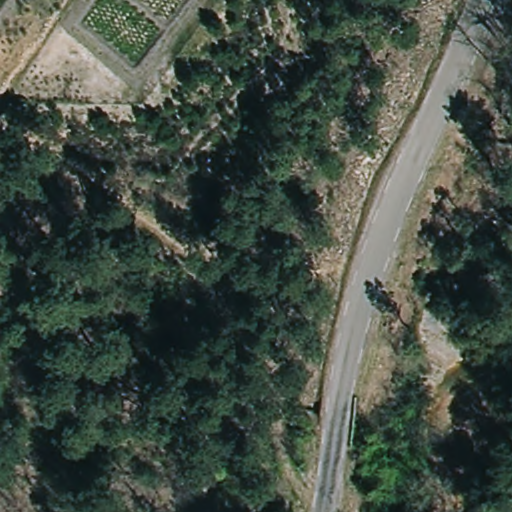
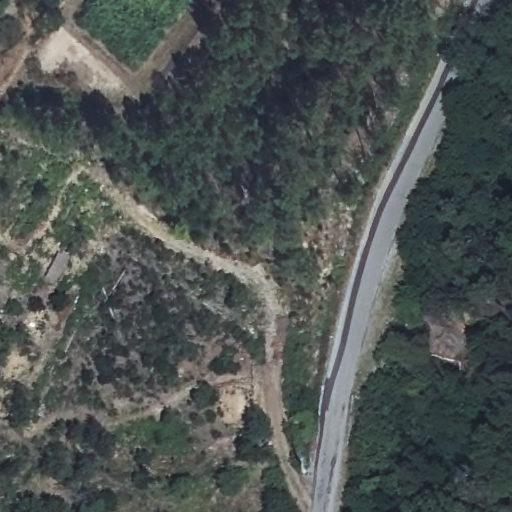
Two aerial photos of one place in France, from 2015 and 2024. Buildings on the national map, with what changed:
unchanged [(293,440),(290,420),(309,416),(313,436),(293,440)]

